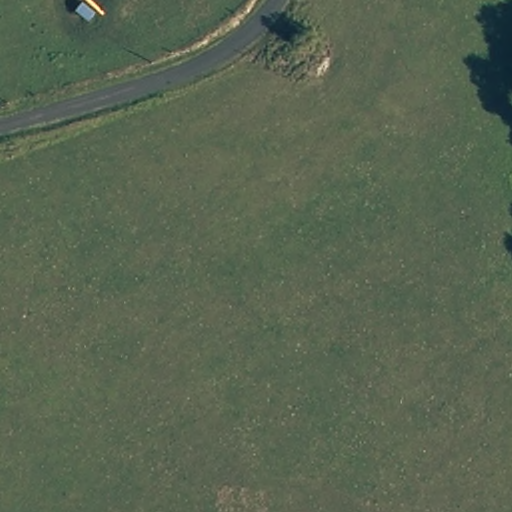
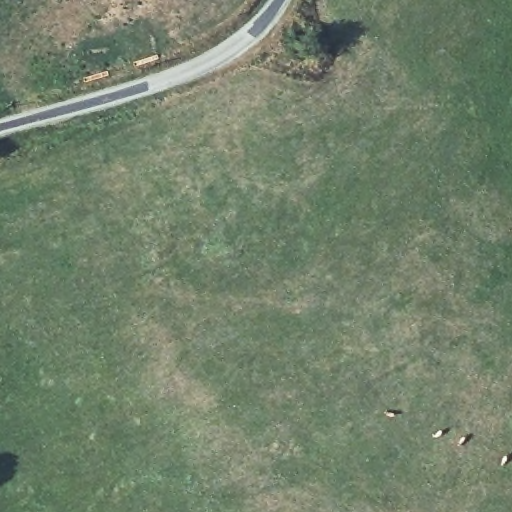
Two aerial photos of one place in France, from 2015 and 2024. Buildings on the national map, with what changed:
[]

